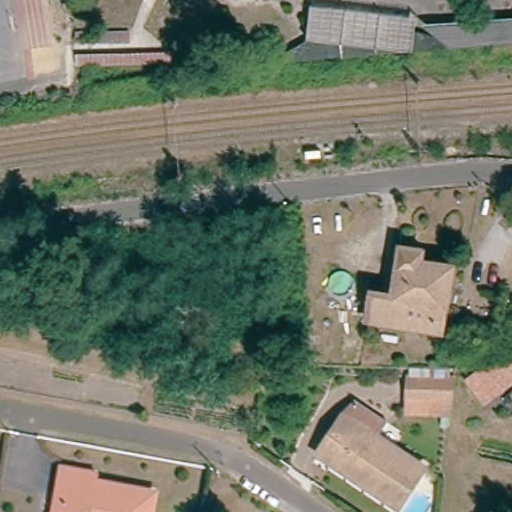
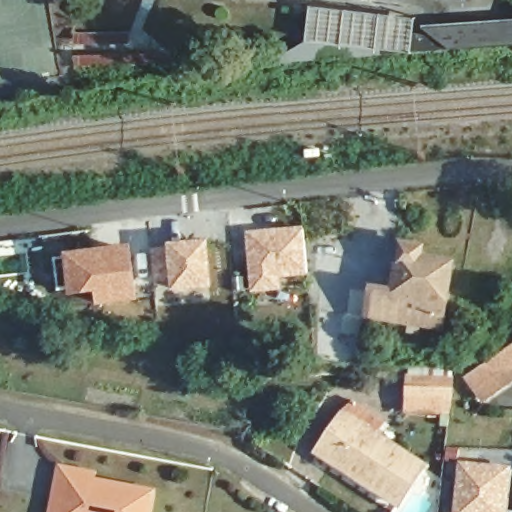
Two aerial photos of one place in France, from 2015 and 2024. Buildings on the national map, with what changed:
unchanged [(357,11),(432,26),(426,60),(323,41),(328,9),(329,7),(357,11)]
unchanged [(448,59),(436,35),(512,29),(512,53),(448,59)]
new [(247,233),(304,228),(308,278),(282,279),(282,292),(252,294),(247,233)]
new [(172,282),(156,285),(153,251),(169,246),(210,242),(215,291),(172,294),(172,282)]
new [(99,308),(97,296),(72,299),(67,255),(132,247),(140,303),(99,308)]
unchanged [(365,323),(368,294),(390,297),(397,248),(420,251),(418,262),(450,267),(439,335),(365,323)]
unchanged [(296,326),(293,347),(253,341),(257,321),(296,326)]
unchanged [(246,355),(231,352),(235,328),(250,330),(246,355)]
unchanged [(496,355),(501,362),(508,356),(512,361),(512,370),(508,373),(512,378),(512,379),(462,416),(445,392),(496,355)]
unchanged [(398,401),(399,381),(442,382),(442,403),(398,401)]
unchanged [(426,464),(400,505),(318,452),(345,412),(426,464)]
new [(457,462),(512,466),(512,479),(509,512),(451,512),(457,462)]
unchanged [(56,508),(62,472),(94,477),(92,485),(152,495),(149,512),(55,512),(56,508)]

